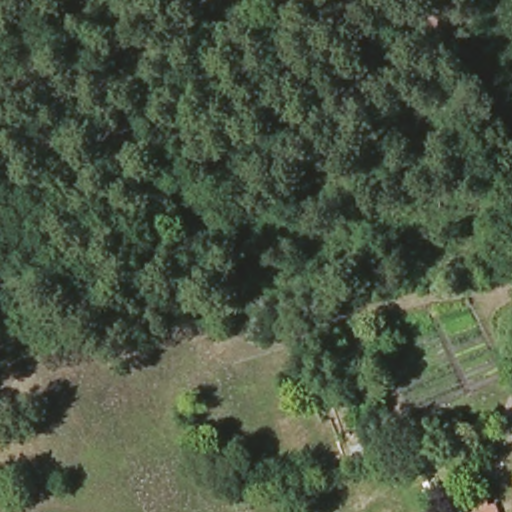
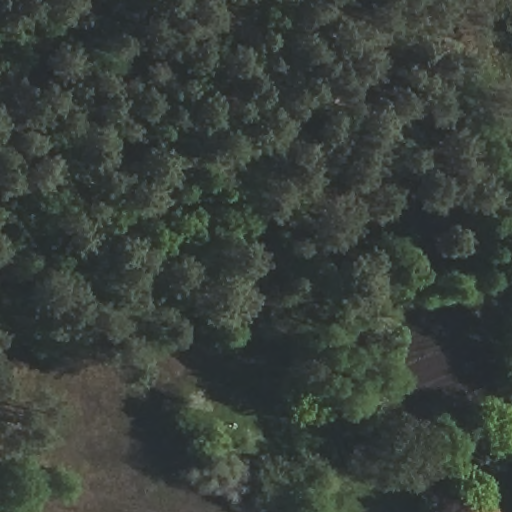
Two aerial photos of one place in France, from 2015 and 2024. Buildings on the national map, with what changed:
unchanged [(488,512),(484,512),(487,511),(488,512)]

